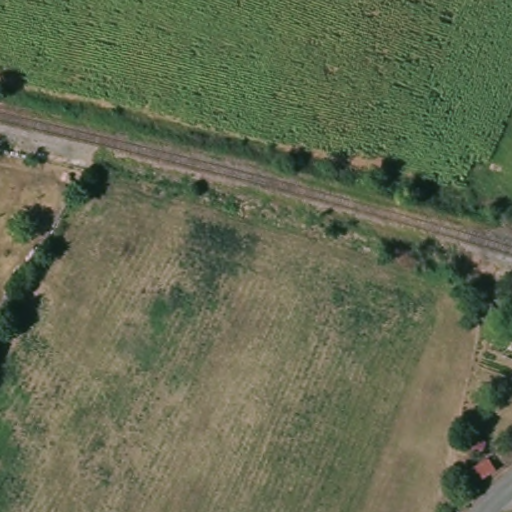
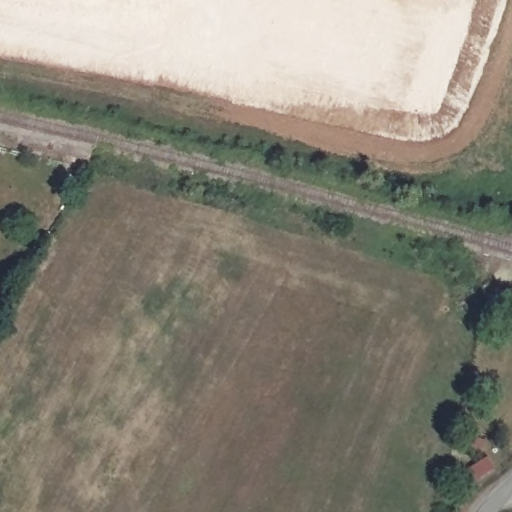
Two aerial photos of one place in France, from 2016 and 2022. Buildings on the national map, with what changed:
unchanged [(487,442),(481,456),(462,449),(468,435),(487,442)]

